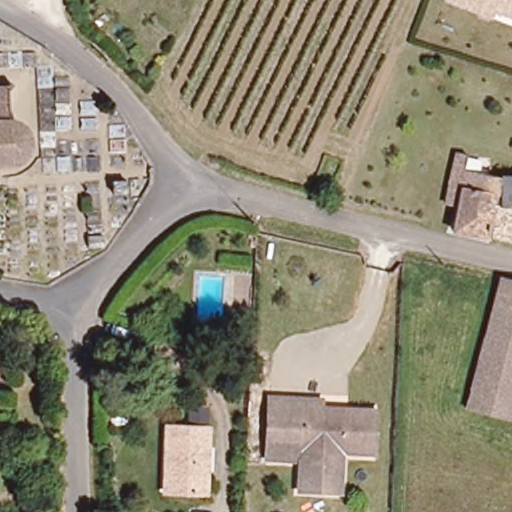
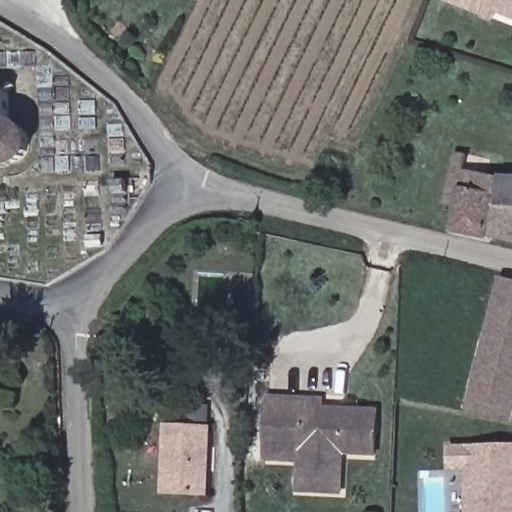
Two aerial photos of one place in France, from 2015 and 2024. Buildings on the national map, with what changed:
unchanged [(446,0),(512,0),(512,17),(510,16),(485,6),(482,15),(469,10),(446,0)]
unchanged [(4,91),(11,82),(15,85),(11,91),(27,91),(26,119),(11,118),(11,120),(22,123),(30,131),(32,144),(28,156),(19,162),(14,162),(13,166),(9,166),(9,163),(0,163),(0,91),(4,91)]
unchanged [(443,206),(452,155),(463,157),(461,172),(496,181),(512,181),(512,207),(494,206),(488,239),(452,231),(456,210),(443,206)]
unchanged [(512,207),(512,244),(488,239),(494,206),(512,207)]
unchanged [(463,407),(497,276),(512,280),(512,399),(507,418),(463,407)]
unchanged [(248,347),(237,347),(237,328),(249,329),(248,347)]
unchanged [(297,483),(297,466),(298,435),(264,435),(264,392),(298,393),(298,396),(320,396),(320,407),(342,408),(342,403),(372,403),(371,447),(339,446),(338,467),(338,485),(297,483)]
unchanged [(209,428),(210,449),(206,450),(205,472),(208,472),(207,493),(188,493),(167,492),(168,427),(209,428)]
new [(464,471),(448,472),(447,447),(512,446),(512,512),(465,512),(464,471)]

